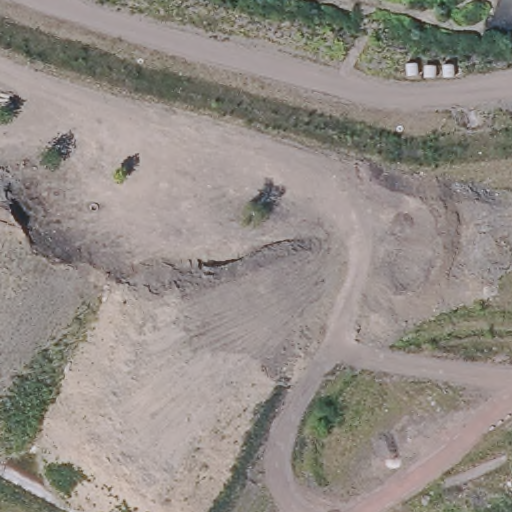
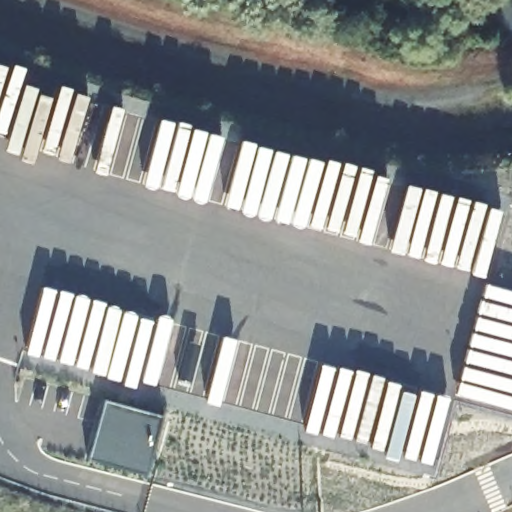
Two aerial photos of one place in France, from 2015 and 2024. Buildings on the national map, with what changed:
new [(147,471),(89,455),(105,400),(160,416),(147,471)]

